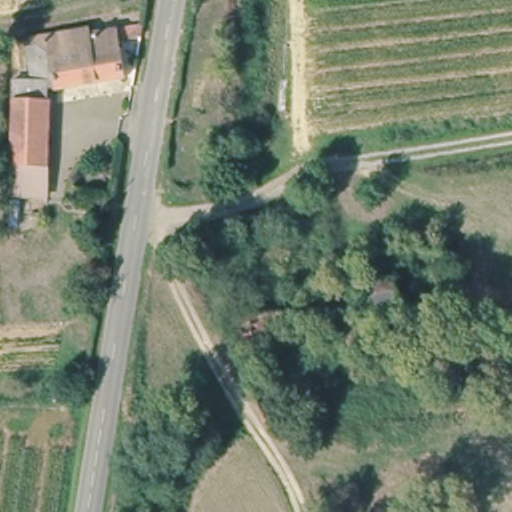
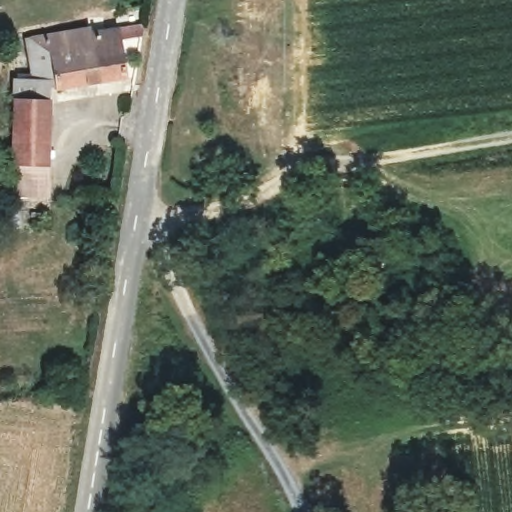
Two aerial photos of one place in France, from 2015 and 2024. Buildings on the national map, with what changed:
unchanged [(9,162),(11,137),(17,49),(18,36),(83,26),(84,35),(142,25),(138,45),(122,47),(123,77),(52,85),(48,134),(46,157),(9,162)]

